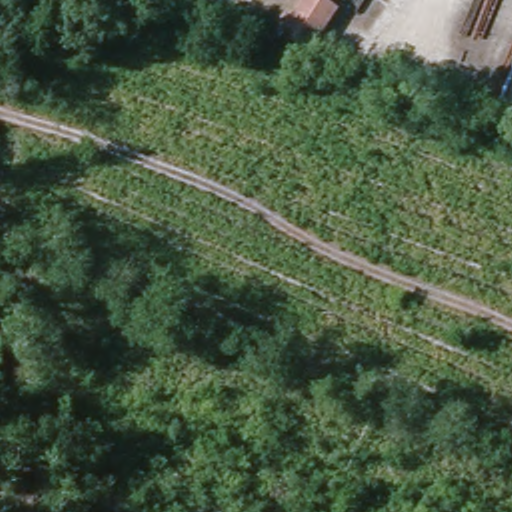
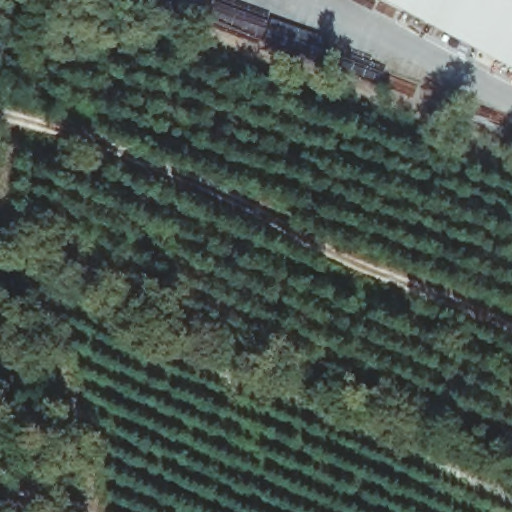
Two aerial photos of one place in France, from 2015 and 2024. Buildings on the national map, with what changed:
demolished [(291,37),(280,50),(267,36),(284,10),(291,16),(302,0),(320,0),(345,14),(312,53),(291,37)]
new [(512,0),(512,69),(385,0),(512,0)]

